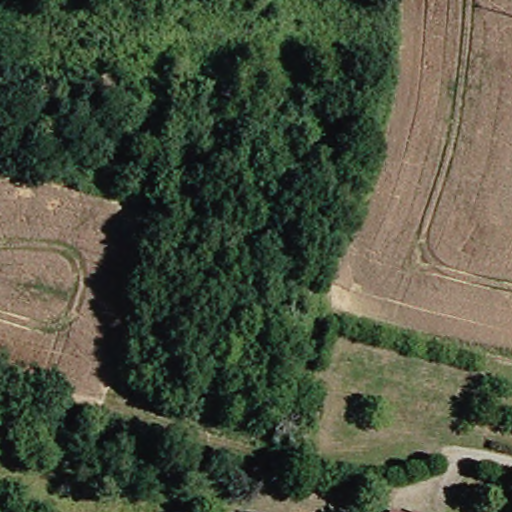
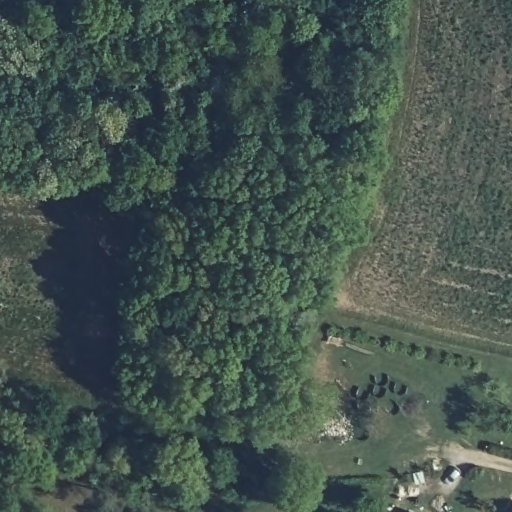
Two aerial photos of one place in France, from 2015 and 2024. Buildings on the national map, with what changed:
unchanged [(399,504),(414,509),(414,512),(396,512),(397,510),(399,504)]

